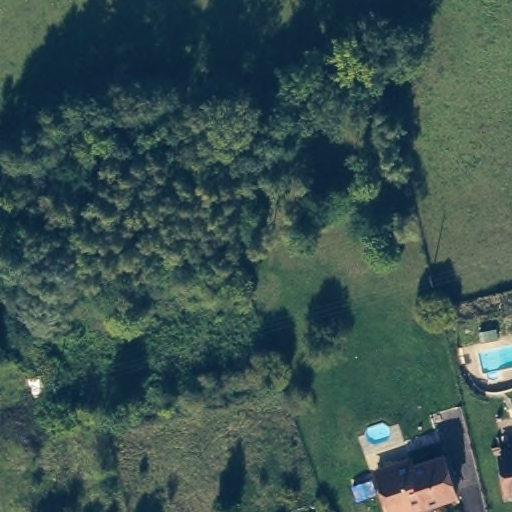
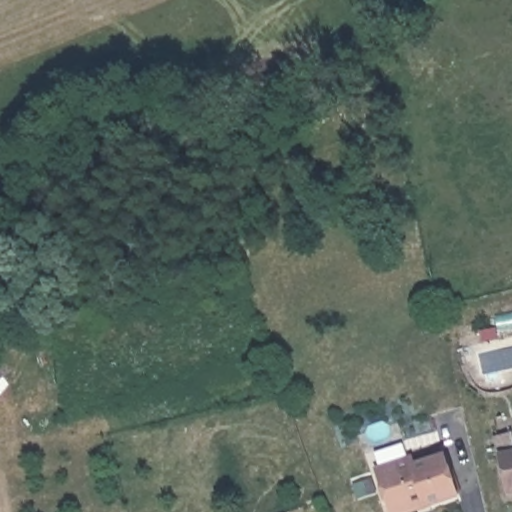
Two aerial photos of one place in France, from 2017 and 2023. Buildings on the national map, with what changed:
unchanged [(512,309),(512,329),(505,331),(500,312),(512,309)]
unchanged [(508,488),(500,451),(512,448),(512,487),(508,488)]
unchanged [(382,471),(413,460),(415,467),(446,457),(458,496),(426,506),(408,512),(396,512),(394,508),(382,471)]

